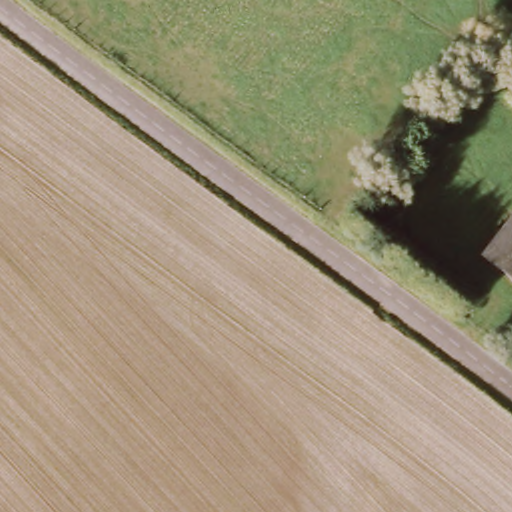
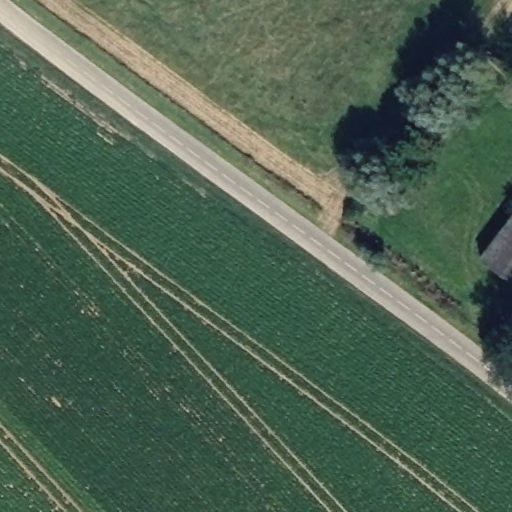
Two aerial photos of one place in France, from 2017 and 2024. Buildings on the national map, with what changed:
unchanged [(512,223),(512,284),(482,261),(512,223)]

